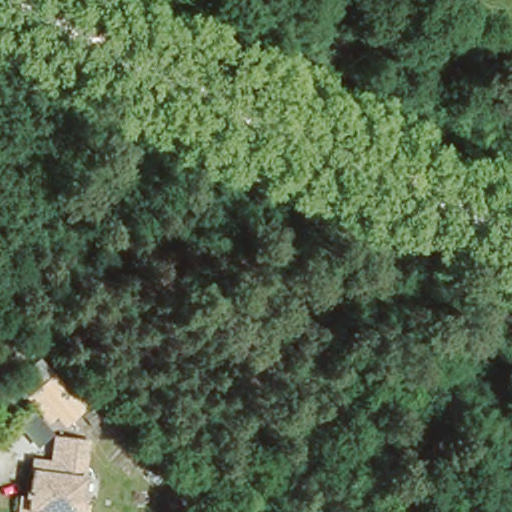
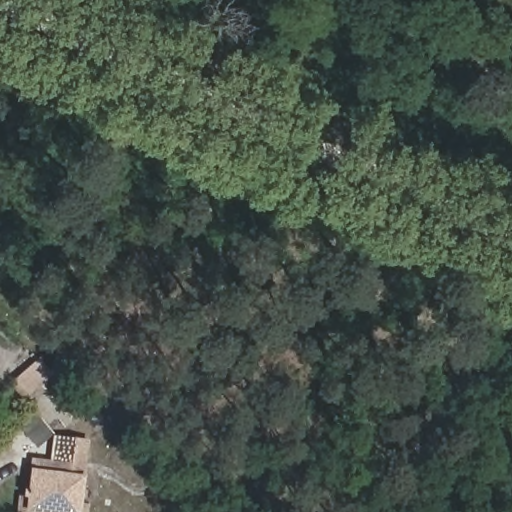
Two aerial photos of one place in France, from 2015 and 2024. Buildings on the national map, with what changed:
unchanged [(29,398),(38,391),(54,378),(83,413),(67,426),(53,409),(44,416),(29,398)]
unchanged [(34,419),(52,441),(36,454),(18,432),(34,419)]
unchanged [(96,512),(29,512),(29,492),(34,492),(38,492),(38,459),(58,459),(58,434),(86,434),(87,496),(95,496),(96,512)]

